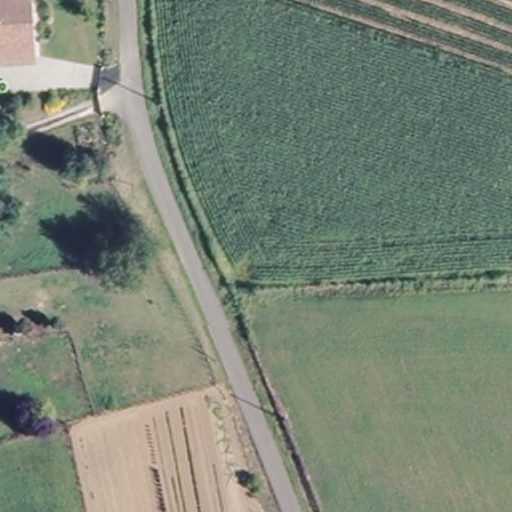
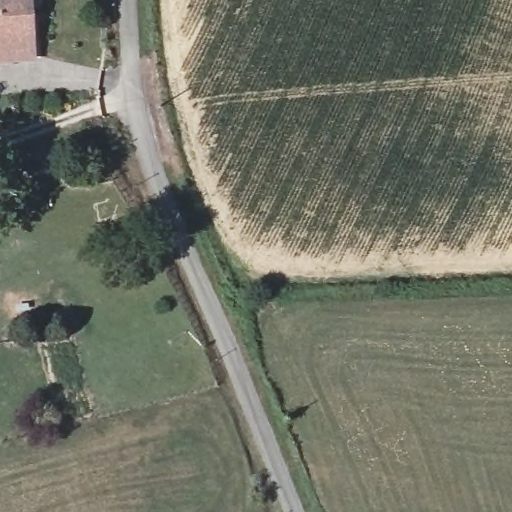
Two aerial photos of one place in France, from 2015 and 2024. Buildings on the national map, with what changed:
unchanged [(30,6),(31,23),(34,42),(35,57),(6,60),(0,61),(0,0),(29,0),(30,6)]

